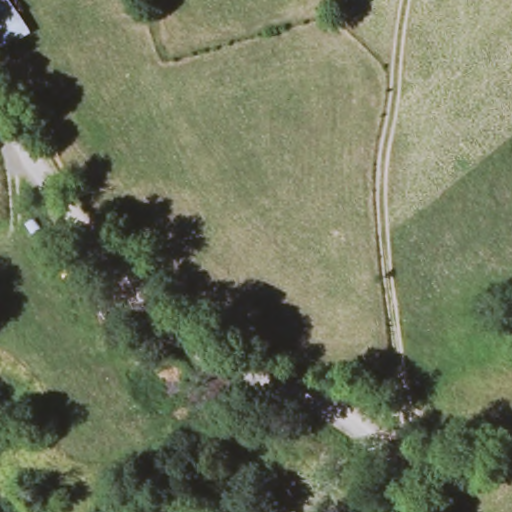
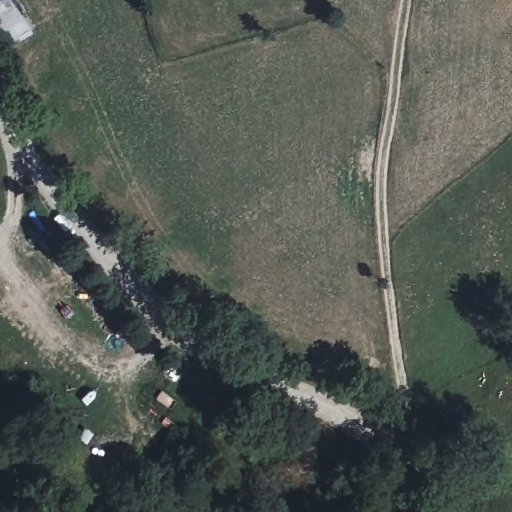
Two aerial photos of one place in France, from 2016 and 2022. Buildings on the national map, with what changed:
unchanged [(35,31),(6,51),(0,44),(0,0),(12,0),(35,31)]

